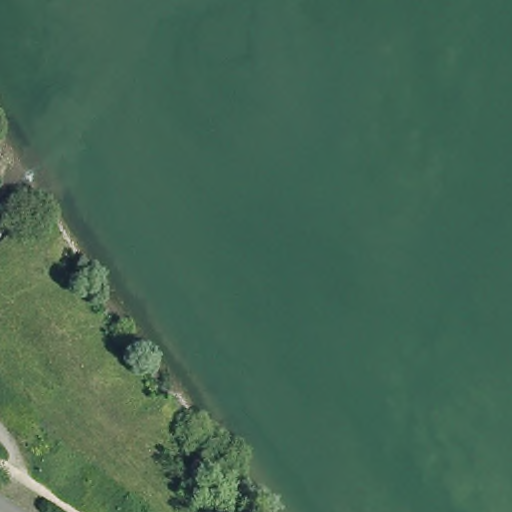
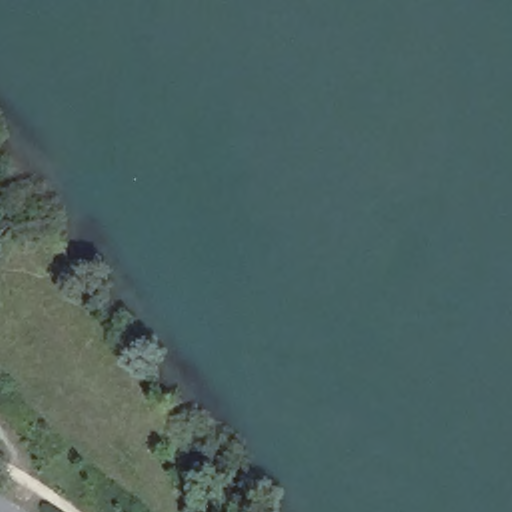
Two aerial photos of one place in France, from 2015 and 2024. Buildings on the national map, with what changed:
[]

